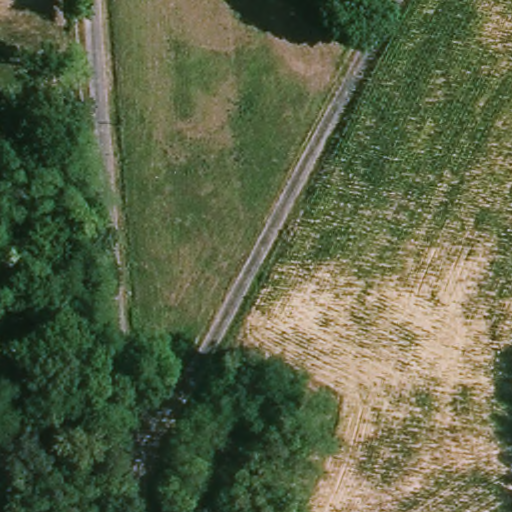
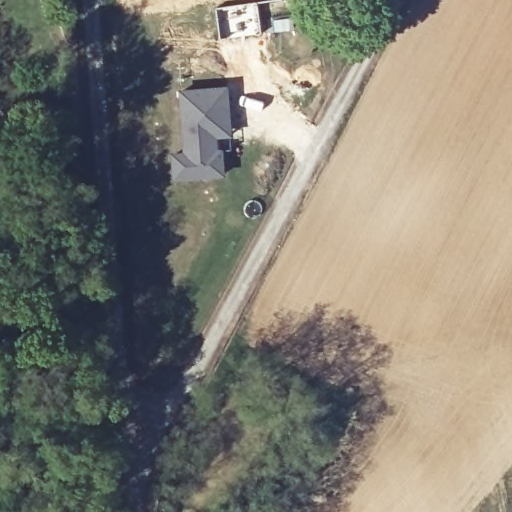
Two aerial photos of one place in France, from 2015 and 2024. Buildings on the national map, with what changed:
new [(256,2),(261,33),(229,38),(224,7),(256,2)]
new [(182,149),(177,89),(229,84),(233,149),(225,150),(227,177),(172,181),(170,151),(182,149)]

